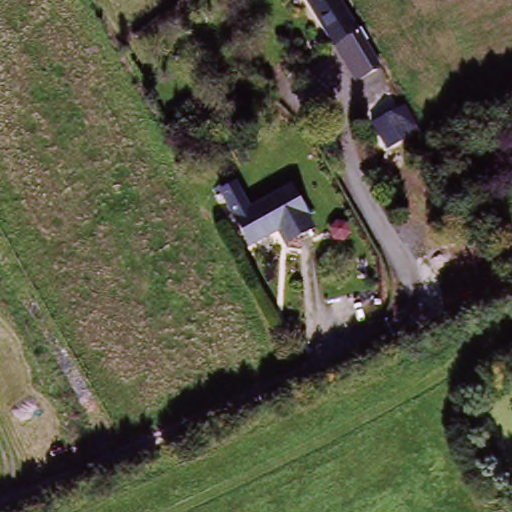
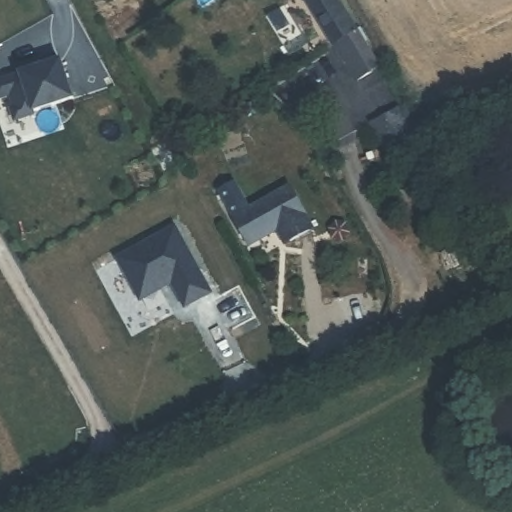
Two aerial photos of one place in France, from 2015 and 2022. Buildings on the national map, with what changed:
unchanged [(373,46),(349,60),(327,23),(326,24),(311,0),(343,0),(373,46)]
new [(18,65),(33,60),(41,57),(43,63),(59,58),(72,96),(33,108),(34,111),(13,118),(9,105),(13,104),(9,93),(0,96),(0,77),(20,71),(18,65)]
unchanged [(256,210),(293,189),(316,231),(288,247),(279,232),(255,245),(225,194),(242,186),(256,210)]
new [(176,223),(212,290),(186,304),(173,280),(141,297),(118,255),(176,223)]

